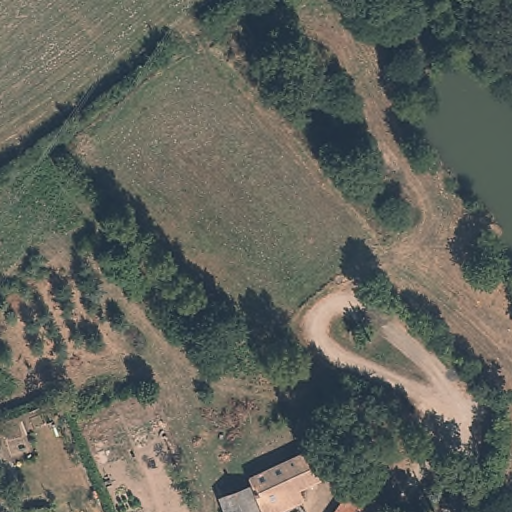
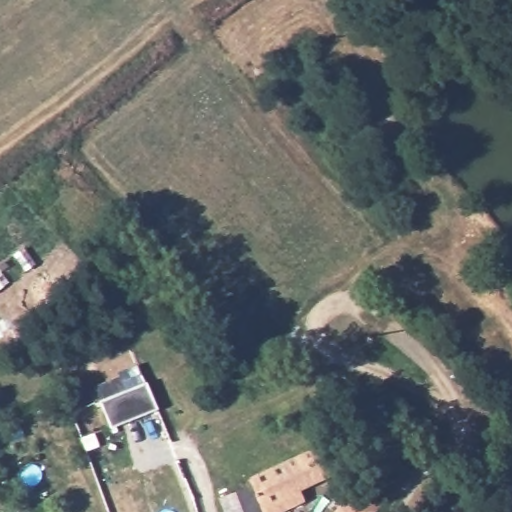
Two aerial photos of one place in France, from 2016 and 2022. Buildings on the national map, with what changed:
new [(145,380),(156,409),(109,428),(97,399),(145,380)]
unchanged [(330,471),(299,485),(304,496),(270,512),(265,512),(248,474),(316,442),(330,471)]
unchanged [(250,482),(261,512),(226,512),(219,494),(250,482)]
unchanged [(328,512),(350,483),(375,501),(367,512),(328,512)]

